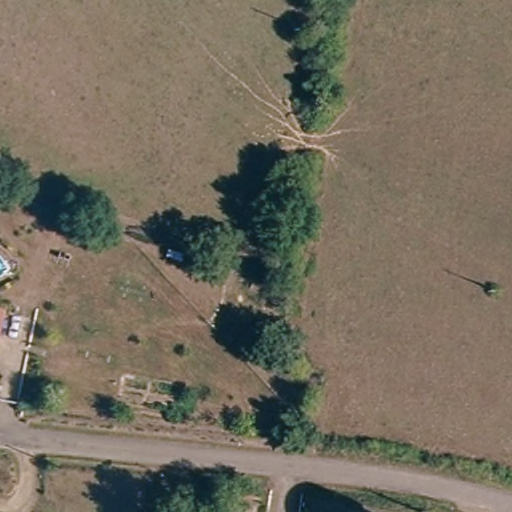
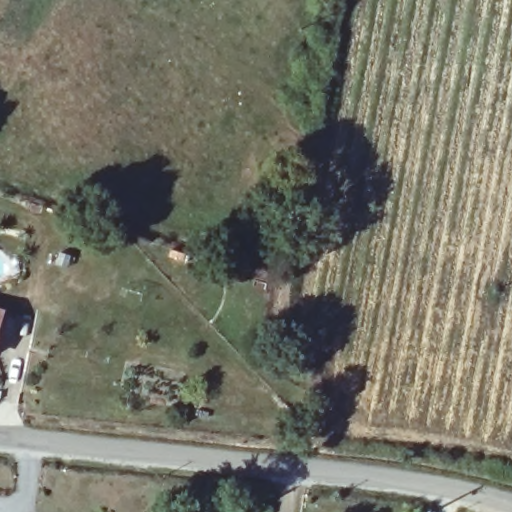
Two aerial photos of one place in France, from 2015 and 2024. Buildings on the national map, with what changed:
unchanged [(0,308),(7,311),(0,331),(0,308)]

